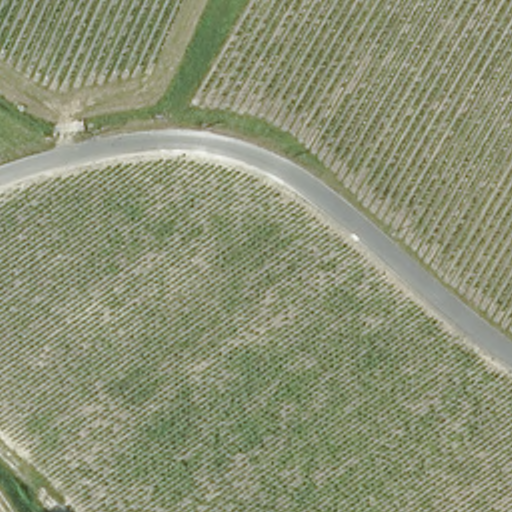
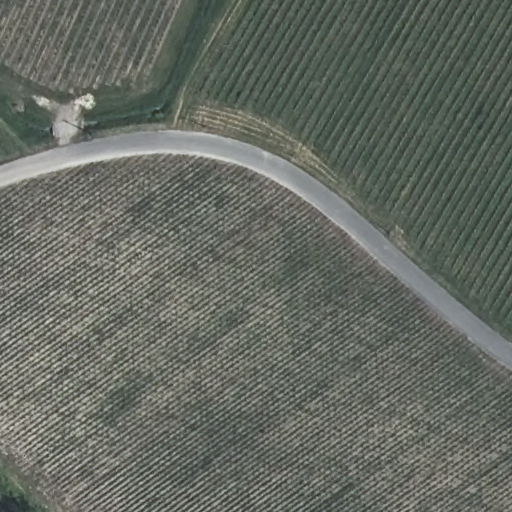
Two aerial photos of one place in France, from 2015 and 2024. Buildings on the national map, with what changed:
[]

